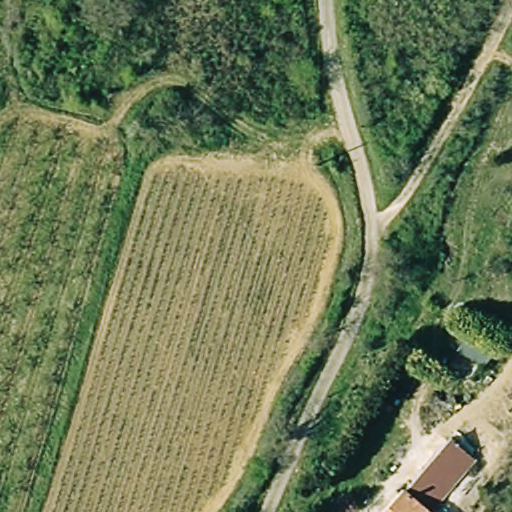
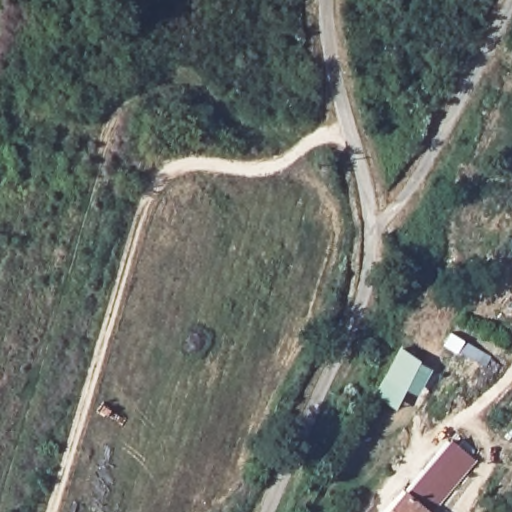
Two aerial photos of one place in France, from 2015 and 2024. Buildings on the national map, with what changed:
new [(492,357),(486,368),(459,352),(457,354),(443,345),(451,332),(492,357)]
new [(400,347),(420,361),(420,362),(432,370),(418,396),(406,389),(396,409),(374,395),(400,347)]
unchanged [(451,437),(480,463),(438,512),(425,512),(406,492),(451,437)]
unchanged [(406,492),(425,512),(388,512),(406,492)]

